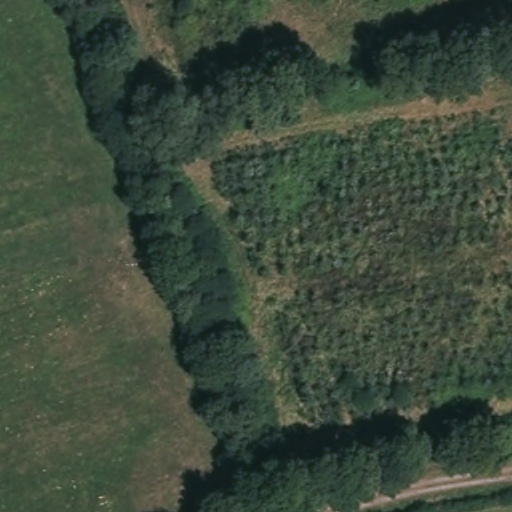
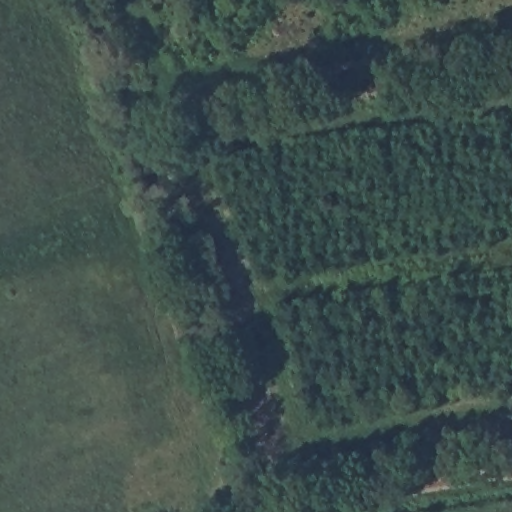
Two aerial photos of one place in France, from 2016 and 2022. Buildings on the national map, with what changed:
[]

